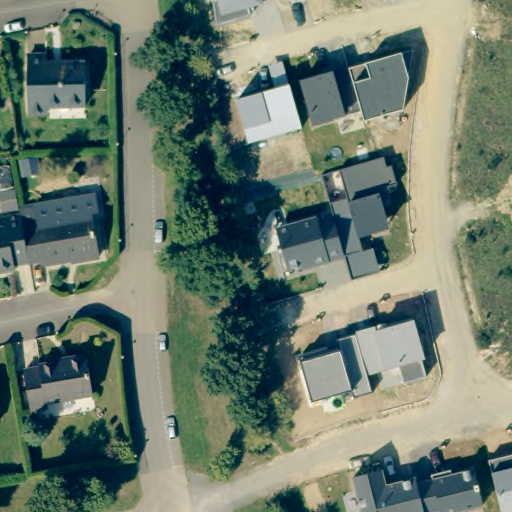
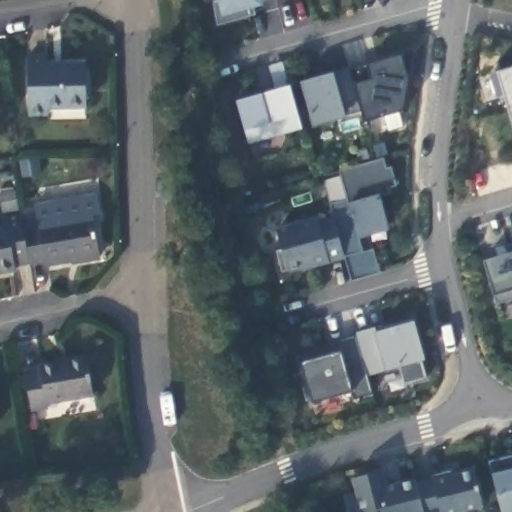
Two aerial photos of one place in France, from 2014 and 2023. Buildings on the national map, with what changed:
unchanged [(220,1),(220,0),(263,0),(264,4),(252,7),(255,13),(250,15),(218,25),(216,1),(220,1)]
unchanged [(311,115),(312,113),(302,81),(335,73),(339,87),(355,84),(350,68),(367,63),(403,54),(412,51),(407,71),(409,80),(404,109),(364,120),(361,111),(346,116),(313,126),(311,115)]
unchanged [(51,54),(51,63),(90,62),(92,105),(53,105),(53,113),(33,113),(33,55),(51,54)]
unchanged [(276,89),(270,65),(282,62),(287,86),(291,86),(299,114),(303,128),(249,143),(247,129),(238,101),(276,89)]
new [(497,98),(490,74),(512,67),(512,115),(506,96),(497,98)]
unchanged [(0,110),(0,90),(3,109),(0,110)]
unchanged [(278,227),(319,217),(321,223),(336,218),(333,203),(350,199),(340,170),(385,158),(388,168),(394,168),(399,190),(379,196),(389,229),(359,237),(363,251),(345,255),(345,259),(304,270),(302,265),(290,269),(278,227)]
unchanged [(28,228),(26,215),(26,213),(25,207),(40,205),(43,220),(96,211),(104,256),(51,265),(49,260),(34,262),(28,228)]
unchanged [(8,226),(6,216),(26,213),(26,215),(28,228),(34,262),(20,265),(21,270),(2,274),(1,271),(0,271),(0,228),(8,226)]
new [(507,246),(512,245),(512,298),(496,303),(495,293),(484,261),(508,253),(507,246)]
unchanged [(303,361),(342,351),(339,340),(356,335),(355,332),(377,327),(377,332),(416,320),(426,360),(422,361),(427,377),(405,382),(399,366),(385,370),(367,375),(372,392),(354,396),(352,390),(314,401),(303,361)]
unchanged [(40,366),(40,363),(86,355),(92,394),(47,402),(47,408),(31,410),(24,368),(40,366)]
unchanged [(5,420),(0,421),(0,394),(5,420)]
unchanged [(491,459),(512,454),(512,512),(510,512),(503,512),(493,472),(491,459)]
unchanged [(353,477),(384,471),(388,484),(417,477),(418,482),(434,478),(433,474),(451,470),(452,474),(470,468),(472,475),(476,473),(483,506),(459,512),(363,512),(353,477)]

